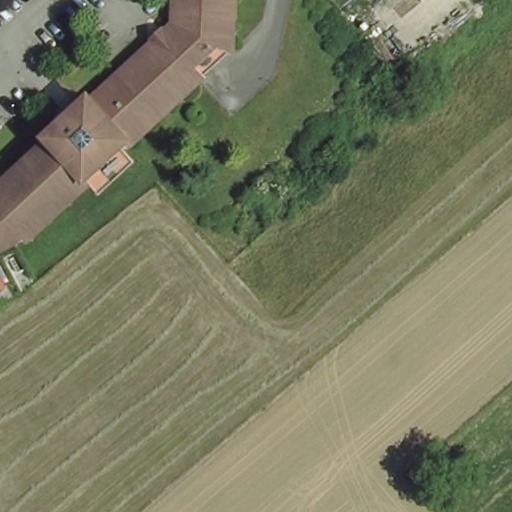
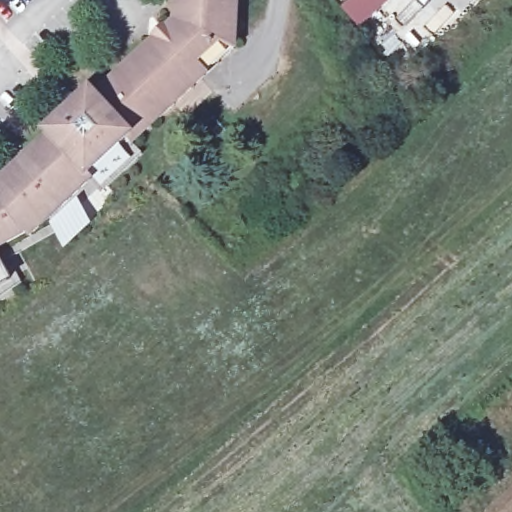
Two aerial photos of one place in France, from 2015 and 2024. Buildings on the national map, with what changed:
unchanged [(223,47),(200,69),(206,79),(135,141),(133,143),(129,139),(123,144),(121,146),(135,162),(98,193),(88,181),(27,235),(23,231),(0,244),(0,190),(53,140),(50,137),(86,103),(93,97),(96,101),(99,98),(179,23),(181,0),(238,0),(235,53),(223,47)]
new [(340,9),(349,0),(383,0),(356,29),(340,9)]
unchanged [(7,277),(0,281),(0,265),(7,277)]

